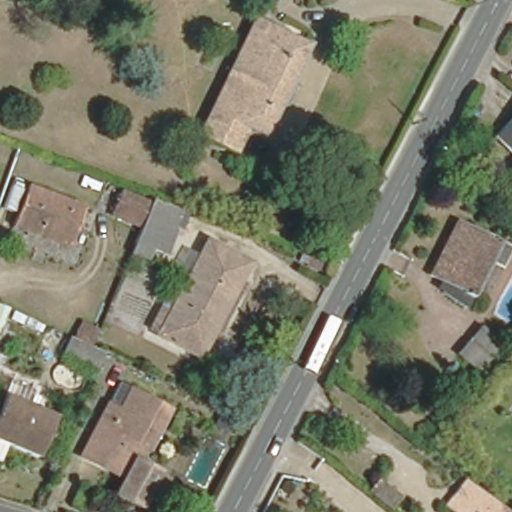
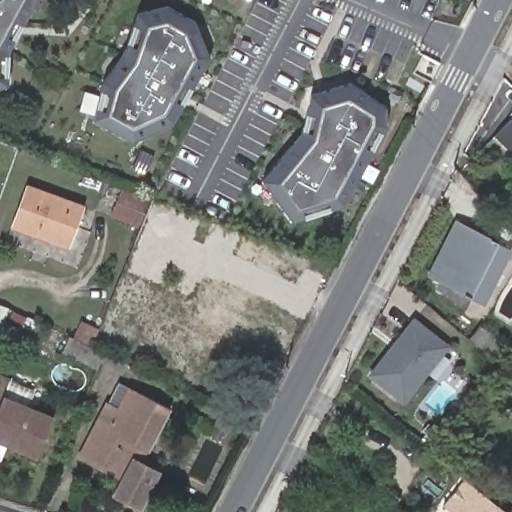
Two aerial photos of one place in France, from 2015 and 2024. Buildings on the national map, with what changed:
new [(0,87),(0,0),(37,0),(10,51),(9,84),(0,87)]
new [(173,123),(133,142),(90,121),(103,82),(120,59),(135,16),(167,7),(195,22),(209,57),(173,123)]
demolished [(255,17),(309,43),(265,137),(249,128),(236,152),(200,135),(211,110),(255,17)]
new [(385,126),(343,206),(291,225),(261,179),(303,127),(306,94),(350,85),(383,107),(385,126)]
unchanged [(495,136),(512,118),(512,153),(495,136)]
unchanged [(15,229),(32,189),(90,213),(72,252),(15,229)]
unchanged [(111,214),(120,192),(147,202),(138,225),(111,214)]
unchanged [(141,260),(137,270),(125,265),(134,246),(153,201),(184,212),(164,258),(152,254),(148,262),(141,260)]
unchanged [(501,265),(492,260),(471,300),(448,287),(455,276),(435,266),(461,214),(510,237),(506,244),(511,246),(501,265)]
unchanged [(179,300),(192,273),(182,268),(193,247),(202,252),(209,240),(250,261),(240,278),(200,355),(161,333),(163,331),(154,326),(164,306),(169,295),(179,300)]
unchanged [(321,261),(327,263),(324,271),(298,261),(301,252),(321,261)]
new [(403,405),(367,375),(414,317),(450,346),(403,405)]
unchanged [(480,327),(505,347),(495,359),(487,353),(470,339),(480,327)]
unchanged [(61,350),(69,332),(90,343),(105,351),(96,367),(83,361),(61,350)]
demolished [(454,357),(465,344),(482,358),(490,365),(479,377),(471,372),(454,357)]
unchanged [(154,469),(136,505),(111,492),(119,476),(78,453),(100,413),(105,404),(118,382),(130,388),(169,409),(145,453),(140,462),(154,469)]
unchanged [(0,463),(0,445),(0,384),(7,387),(1,401),(52,421),(37,459),(7,448),(1,464),(0,463)]
unchanged [(220,412),(234,419),(229,430),(215,422),(220,412)]
unchanged [(502,512),(444,512),(437,507),(459,478),(502,512)]
unchanged [(400,499),(390,511),(366,492),(376,481),(400,499)]

